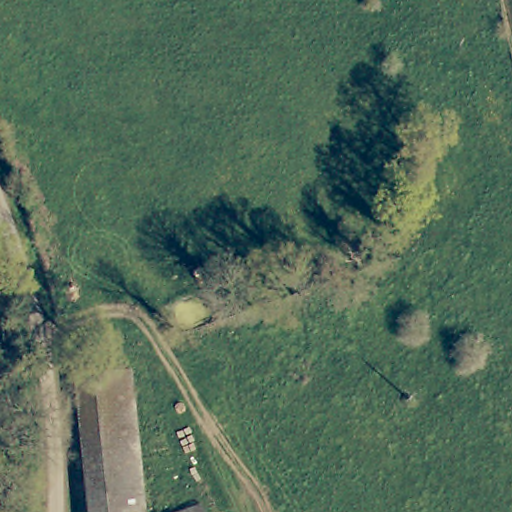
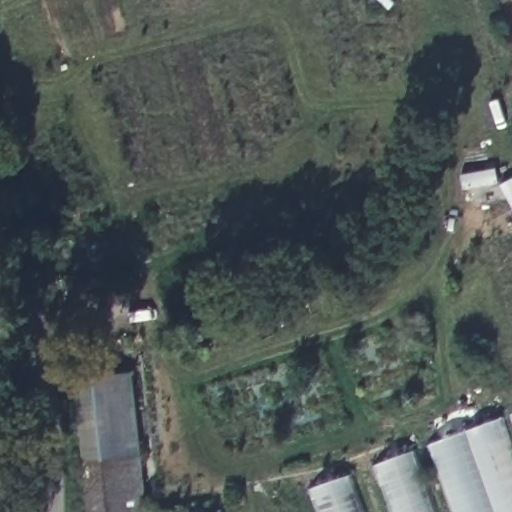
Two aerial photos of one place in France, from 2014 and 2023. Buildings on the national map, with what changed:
unchanged [(85,495),(72,379),(127,373),(139,489),(85,495)]
new [(500,415),(512,450),(512,512),(457,512),(432,443),(500,415)]
new [(440,512),(394,512),(377,463),(417,447),(440,512)]
new [(322,512),(312,487),(351,473),(365,512),(322,512)]
unchanged [(141,512),(86,512),(85,495),(139,489),(141,512)]
unchanged [(198,512),(173,512),(195,503),(198,512)]

